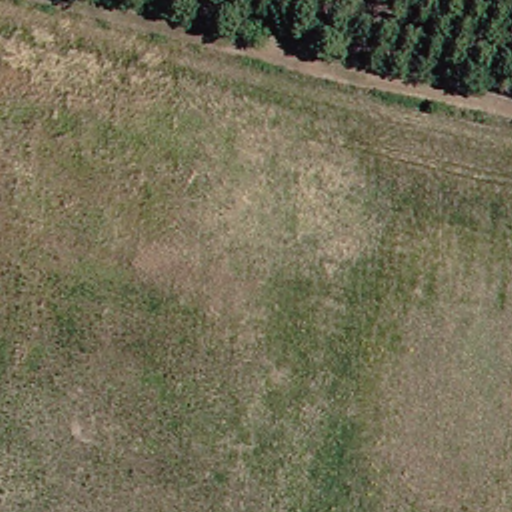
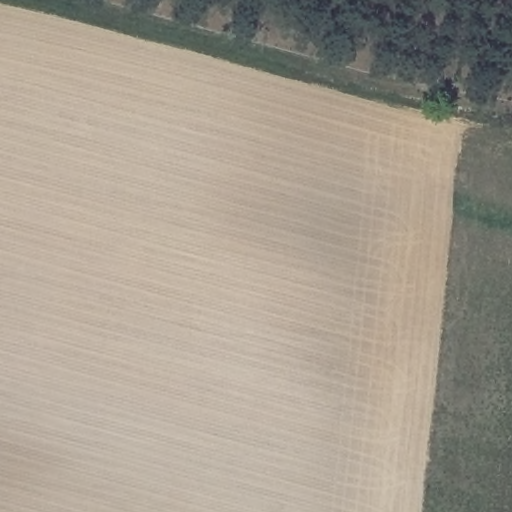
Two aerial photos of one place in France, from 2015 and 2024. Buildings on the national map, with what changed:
[]

